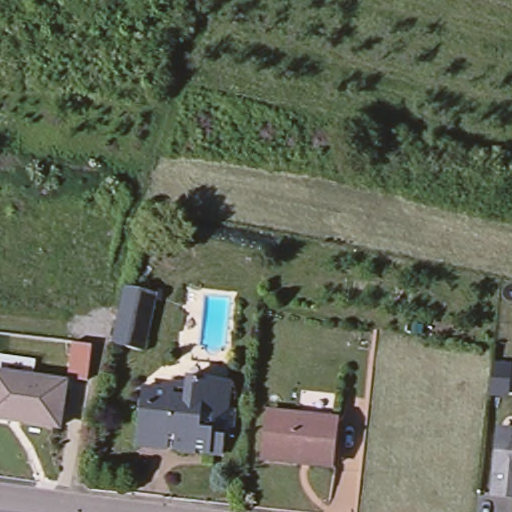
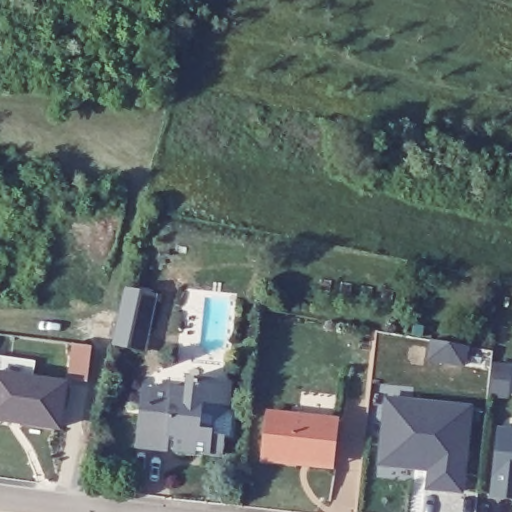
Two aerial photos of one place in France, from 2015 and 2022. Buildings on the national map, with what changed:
unchanged [(125,284),(157,293),(144,347),(113,339),(125,284)]
unchanged [(22,429),(22,427),(0,424),(0,363),(37,369),(35,386),(65,391),(65,392),(58,435),(22,429)]
unchanged [(494,363),(511,365),(508,392),(491,390),(494,363)]
unchanged [(133,450),(136,421),(138,393),(144,394),(154,396),(165,390),(184,393),(185,383),(198,385),(198,389),(223,392),(225,389),(227,389),(224,414),(234,416),(231,444),(220,443),(218,460),(201,458),(193,457),(133,450)]
new [(386,399),(473,407),(465,496),(426,492),(428,471),(379,467),(386,399)]
unchanged [(302,464),(266,459),(271,413),(340,421),(336,458),(335,468),(302,464)]
unchanged [(497,428),(512,429),(512,494),(492,493),(497,428)]

